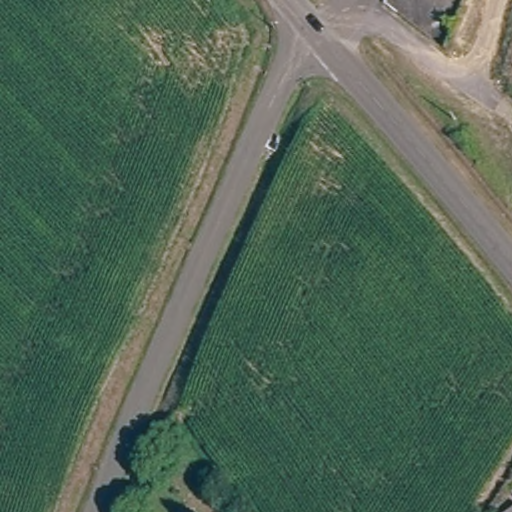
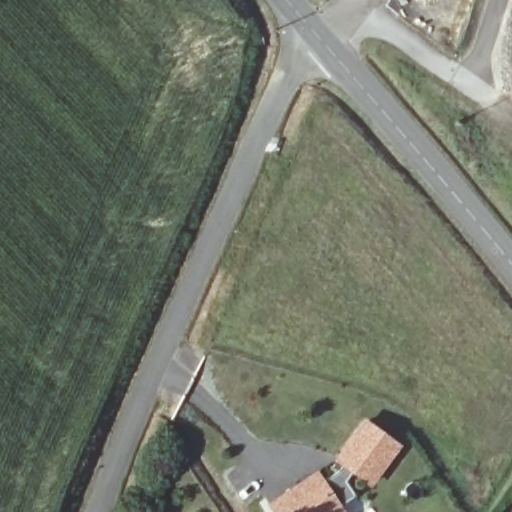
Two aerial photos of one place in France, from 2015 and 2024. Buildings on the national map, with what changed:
new [(338,467),(331,463),(337,456),(364,418),(397,443),(369,480),(352,468),(345,477),(356,492),(326,512),(277,512),(269,501),(316,471),(321,478),(338,467)]
unchanged [(510,512),(512,511),(512,512),(510,512)]

